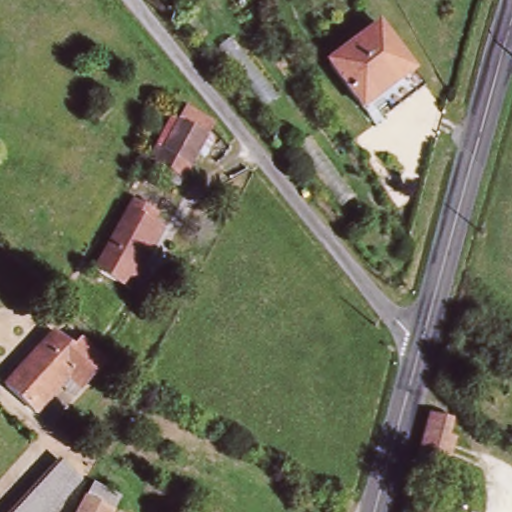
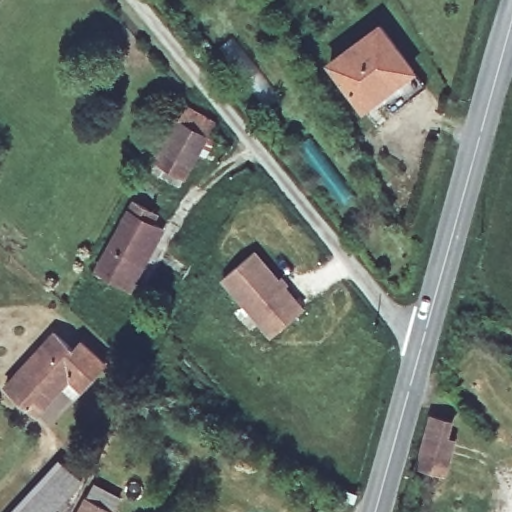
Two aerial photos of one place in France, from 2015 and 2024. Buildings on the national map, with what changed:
unchanged [(327,65),(377,30),(409,76),(359,111),(327,65)]
unchanged [(191,171),(162,157),(182,117),(209,134),(191,171)]
unchanged [(138,220),(150,229),(118,290),(91,276),(131,203),(144,210),(138,220)]
new [(304,309),(270,337),(221,280),(254,250),(304,309)]
unchanged [(70,355),(75,348),(98,369),(78,392),(68,383),(34,421),(4,393),(52,339),(70,355)]
unchanged [(429,422),(452,428),(447,443),(437,475),(416,469),(425,437),(429,422)]
unchanged [(78,494),(63,512),(29,512),(61,477),(78,494)]
unchanged [(108,512),(76,512),(83,496),(108,512)]

